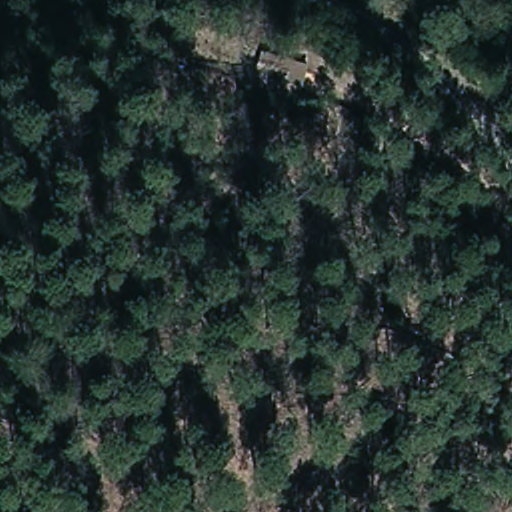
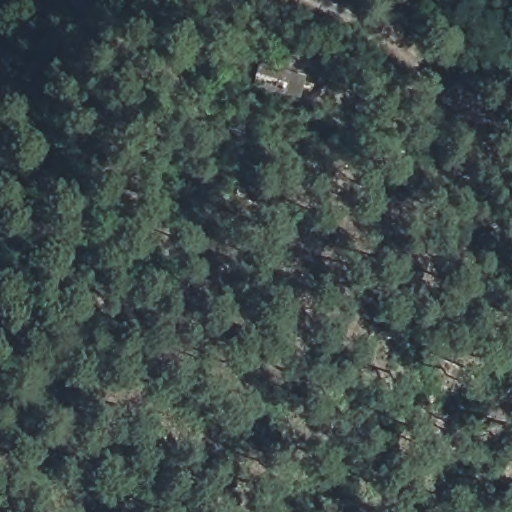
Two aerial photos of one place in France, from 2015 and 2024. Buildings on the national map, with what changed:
unchanged [(308,65),(304,95),(255,87),(262,57),(308,65)]

